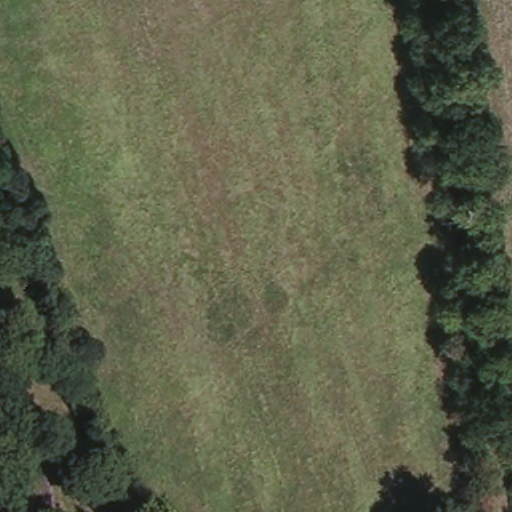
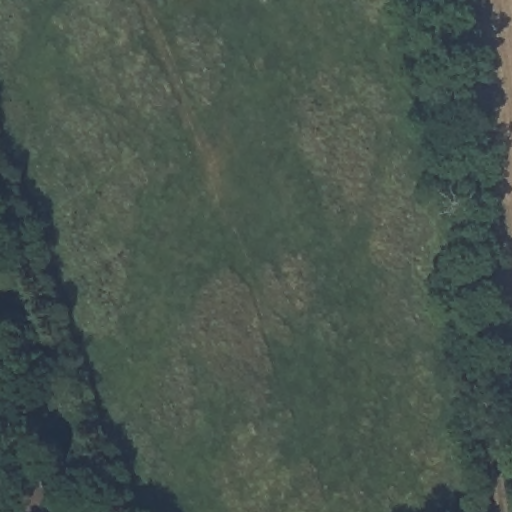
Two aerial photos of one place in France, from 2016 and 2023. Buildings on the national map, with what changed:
unchanged [(54,512),(28,512),(22,495),(45,489),(54,512)]

